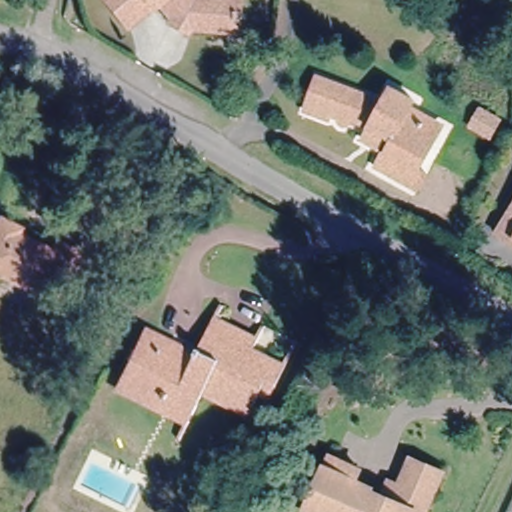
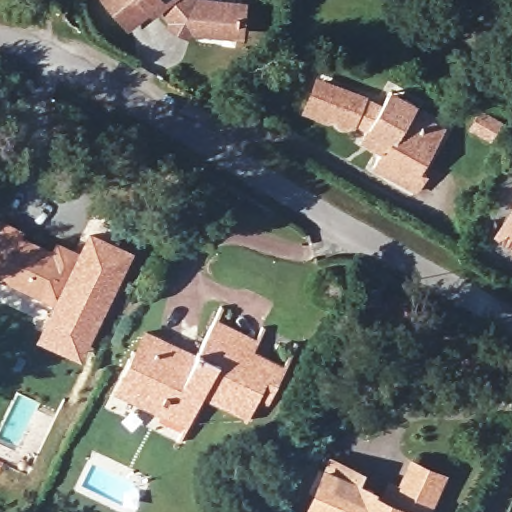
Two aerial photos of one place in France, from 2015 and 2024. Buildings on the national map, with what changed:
unchanged [(117,22),(97,0),(236,0),(235,29),(186,28),(184,33),(165,24),(166,19),(153,4),(146,9),(124,30),(117,22)]
unchanged [(366,123),(353,117),(352,119),(347,116),(344,121),(342,121),(339,119),(338,118),(336,112),(328,110),(326,114),(306,106),(317,74),(362,90),(360,92),(380,100),(390,85),(411,97),(408,103),(439,120),(414,165),(420,170),(412,183),(371,160),(379,147),(374,144),(359,135),(366,123)]
unchanged [(501,117),(492,134),(474,124),(482,108),(501,117)]
unchanged [(498,228),(512,205),(512,236),(498,228)]
unchanged [(0,272),(0,226),(2,222),(20,230),(17,236),(51,252),(56,244),(80,255),(57,300),(0,272)]
new [(36,341),(57,300),(80,255),(93,231),(135,252),(81,360),(36,341)]
unchanged [(259,336),(253,347),(285,363),(269,394),(260,389),(249,410),(204,387),(189,419),(115,382),(143,325),(195,349),(213,313),(257,335),(259,336)]
unchanged [(357,483),(353,493),(368,500),(366,504),(377,509),(380,504),(395,498),(408,472),(437,485),(425,512),(308,512),(313,502),(327,470),(349,479),(357,483)]

